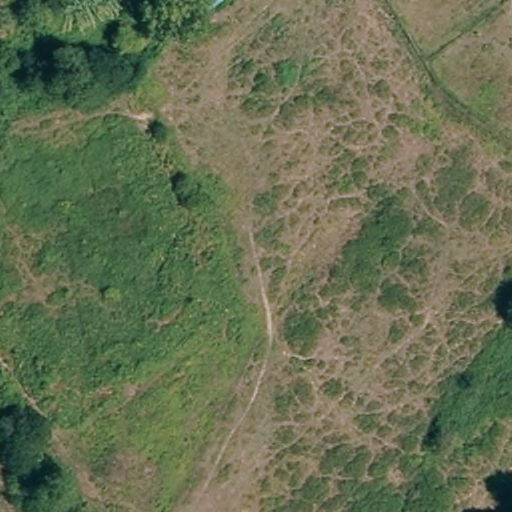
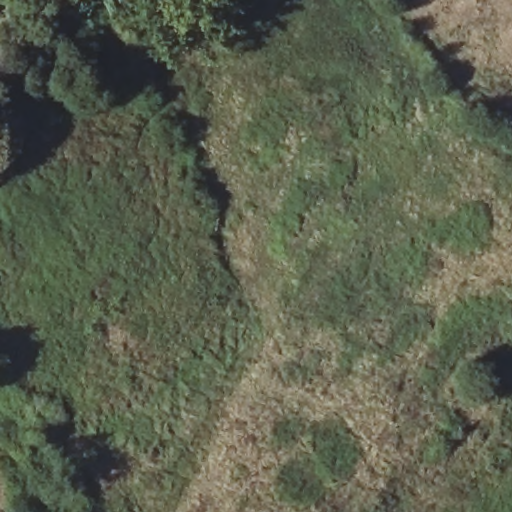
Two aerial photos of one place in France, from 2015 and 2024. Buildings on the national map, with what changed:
unchanged [(201,0),(217,0),(207,8),(201,0)]

